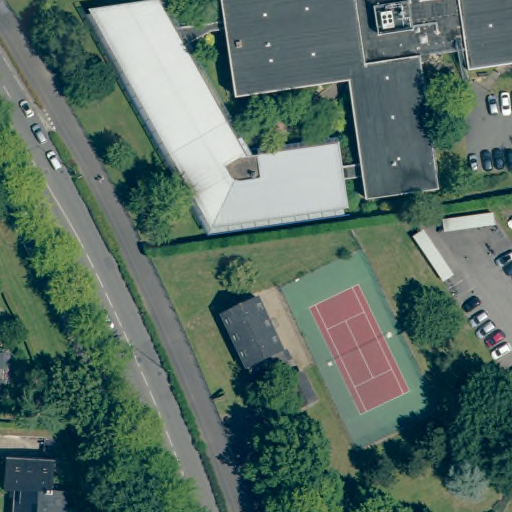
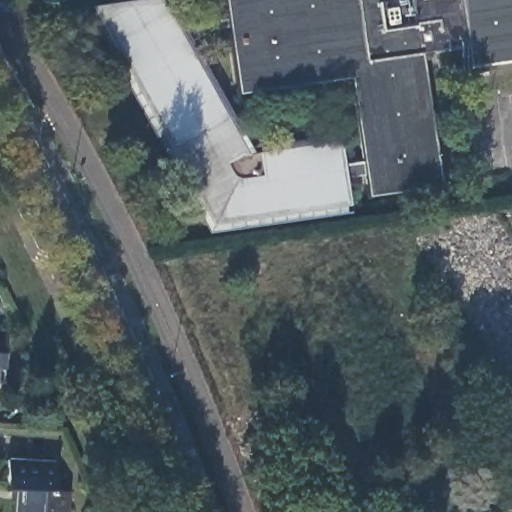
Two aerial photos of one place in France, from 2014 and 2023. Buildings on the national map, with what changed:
unchanged [(467,49),(432,53),(431,56),(429,59),(426,60),(422,60),(440,189),(367,199),(363,176),(341,179),(344,202),(230,218),(230,217),(208,183),(189,157),(185,153),(171,134),(163,127),(100,10),(162,1),(175,26),(227,19),(224,0),(512,0),(512,62),(470,68),(467,49)]
demolished [(283,365),(279,353),(242,369),(218,314),(257,297),(274,335),(281,352),(280,352),(286,364),(283,365)]
unchanged [(4,357),(2,385),(0,385),(0,357),(4,357)]
unchanged [(13,488),(4,488),(5,457),(52,461),(51,488),(64,489),(64,512),(13,512),(13,488)]

